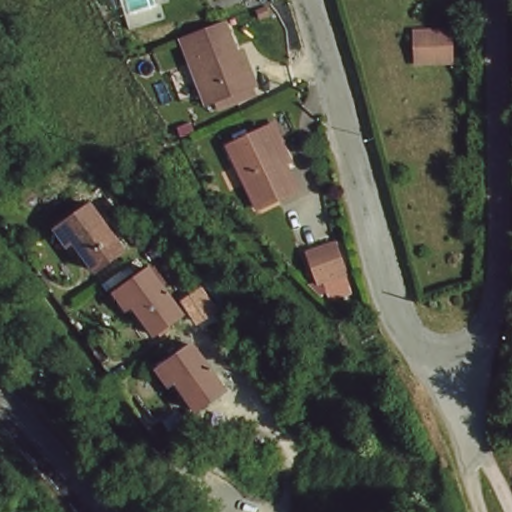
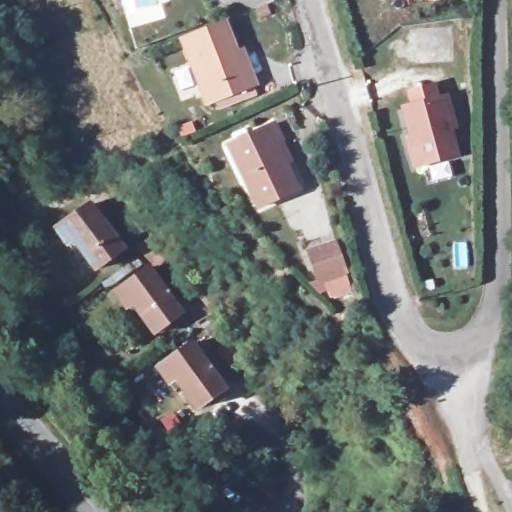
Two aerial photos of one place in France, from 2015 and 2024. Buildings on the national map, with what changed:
unchanged [(244,76),(250,74),(255,91),(206,107),(183,38),(225,23),(244,76)]
demolished [(450,27),(450,50),(418,50),(418,28),(450,27)]
new [(405,104),(402,90),(434,84),(437,96),(447,95),(457,159),(410,168),(397,106),(405,104)]
unchanged [(254,212),(223,150),(268,128),(276,143),(275,144),(285,165),(280,168),(292,193),(254,212)]
unchanged [(108,178),(155,239),(137,251),(103,213),(88,190),(108,178)]
unchanged [(119,252),(92,269),(72,242),(64,246),(52,227),(87,205),(119,252)]
unchanged [(322,285),(317,287),(306,259),(332,249),(342,278),(347,289),(327,297),(322,285)]
unchanged [(167,320),(142,337),(120,308),(113,314),(102,297),(133,277),(167,320)]
unchanged [(191,320),(180,328),(167,310),(178,302),(191,320)]
unchanged [(233,358),(222,365),(210,348),(222,340),(233,358)]
unchanged [(217,394),(188,414),(170,385),(162,389),(152,373),(187,349),(217,394)]

